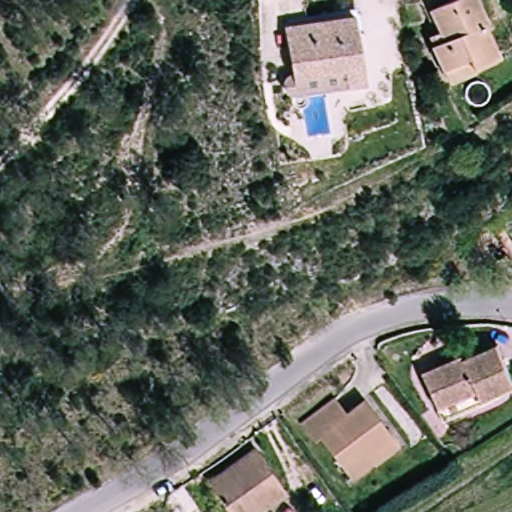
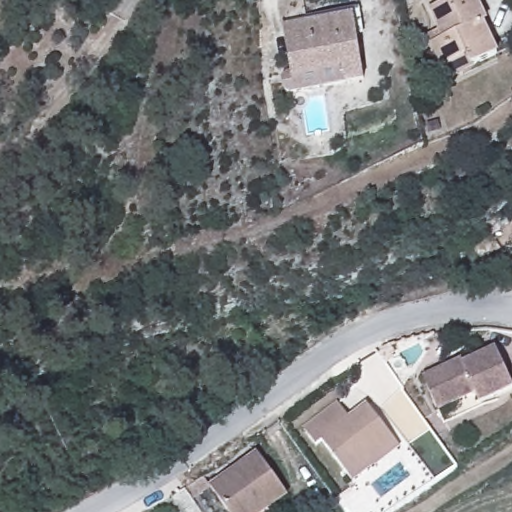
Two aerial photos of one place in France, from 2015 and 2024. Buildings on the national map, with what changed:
unchanged [(443,67),(435,45),(445,38),(433,9),(452,0),(476,0),(487,24),(481,25),(492,58),(470,69),(448,80),(443,67)]
unchanged [(287,28),(350,15),(353,36),(363,79),(302,93),(287,28)]
unchanged [(438,407),(423,374),(460,354),(462,362),(495,342),(512,382),(512,390),(483,404),(482,401),(444,418),(438,407)]
unchanged [(323,450),(318,455),(306,439),(338,410),(353,426),(369,412),(398,449),(372,469),(375,475),(357,490),(323,450)]
unchanged [(258,452),(290,496),(267,512),(228,512),(210,486),(258,452)]

